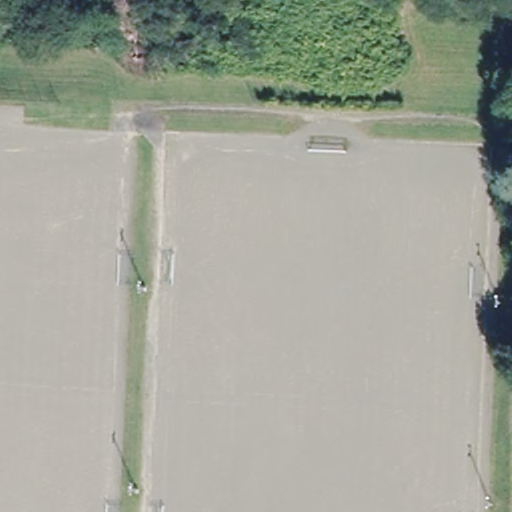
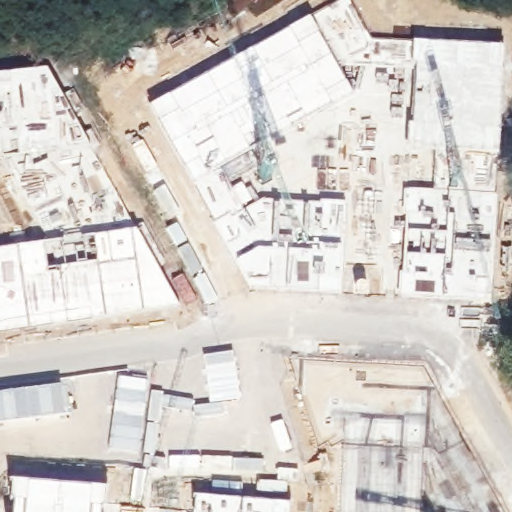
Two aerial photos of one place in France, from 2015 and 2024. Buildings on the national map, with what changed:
new [(498,155),(494,214),(485,214),(474,205),(469,192),(435,191),(436,150),(408,148),(409,124),(412,124),(415,70),(337,65),(310,15),(338,0),(350,0),(373,41),(412,42),(505,46),(498,155)]
new [(310,15),(352,94),(306,116),(287,81),(247,104),(249,107),(234,119),(229,110),(172,144),(150,105),(310,15)]
new [(0,334),(0,248),(49,241),(5,155),(0,156),(0,73),(47,68),(180,308),(0,334)]
new [(342,295),(250,290),(192,186),(172,144),(229,110),(234,119),(249,107),(247,104),(287,81),(306,116),(292,125),(295,130),(272,144),(269,140),(249,151),(257,169),(228,182),(244,210),(262,199),(346,201),(342,295)]
new [(404,225),(404,190),(469,192),(474,205),(485,214),(494,214),(491,301),(401,295),(402,287),(408,287),(408,280),(400,280),(404,225)]
new [(62,385),(66,412),(0,421),(0,392),(62,385)]
new [(14,500),(10,500),(12,479),(107,488),(105,511),(101,511),(100,512),(13,512),(14,500)]
new [(195,497),(288,505),(288,512),(193,512),(195,497)]

